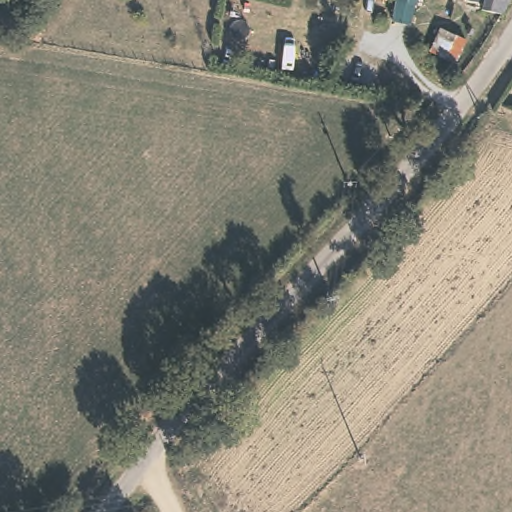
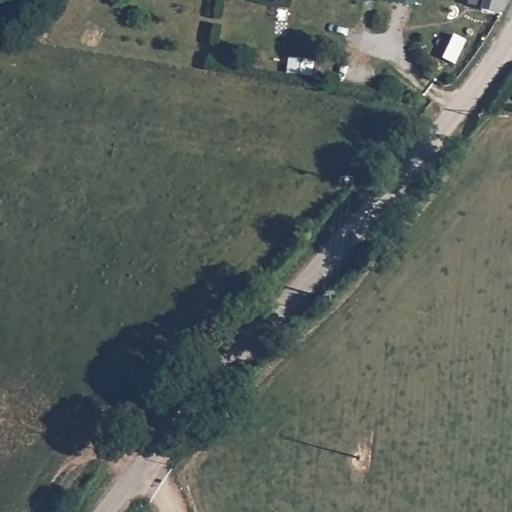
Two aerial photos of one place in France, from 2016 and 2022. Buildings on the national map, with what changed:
unchanged [(484,2),(484,0),(505,0),(501,5),(484,2)]
unchanged [(466,41),(455,65),(443,61),(454,37),(466,41)]

